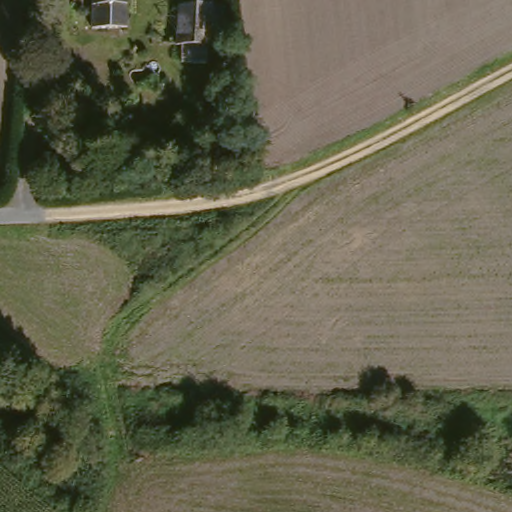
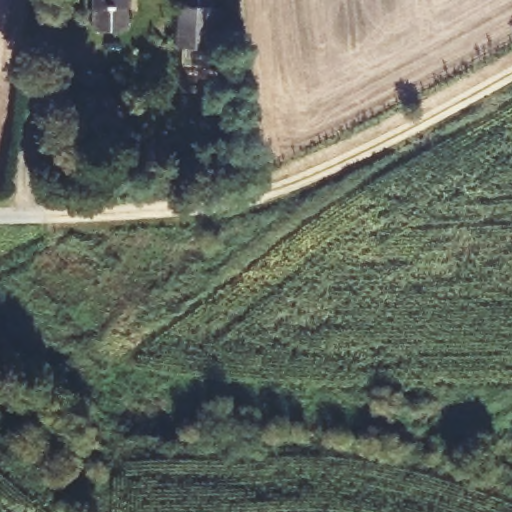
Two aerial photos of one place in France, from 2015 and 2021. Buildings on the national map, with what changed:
unchanged [(129,30),(96,31),(96,0),(129,0),(129,30)]
unchanged [(191,0),(209,0),(209,5),(215,6),(213,56),(179,55),(181,14),(191,14),(191,0)]

